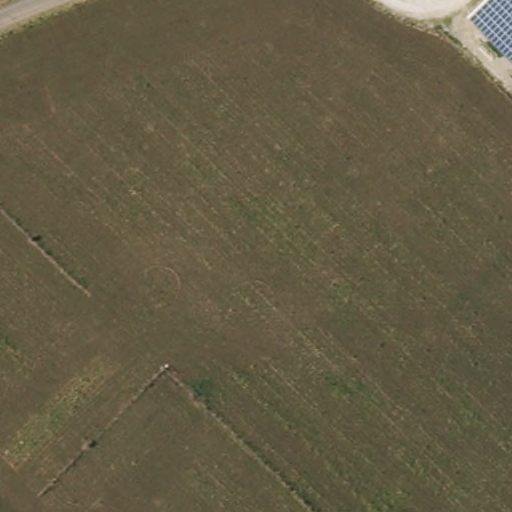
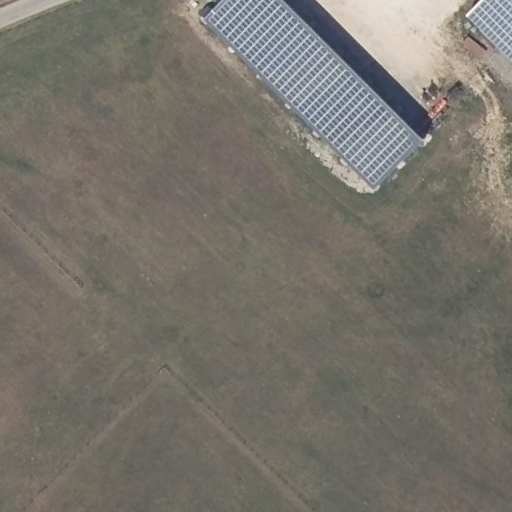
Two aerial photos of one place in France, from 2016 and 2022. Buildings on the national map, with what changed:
new [(225,0),(287,0),(425,138),(375,189),(206,19),(225,0)]
unchanged [(469,15),(484,0),(512,0),(512,59),(469,15)]

